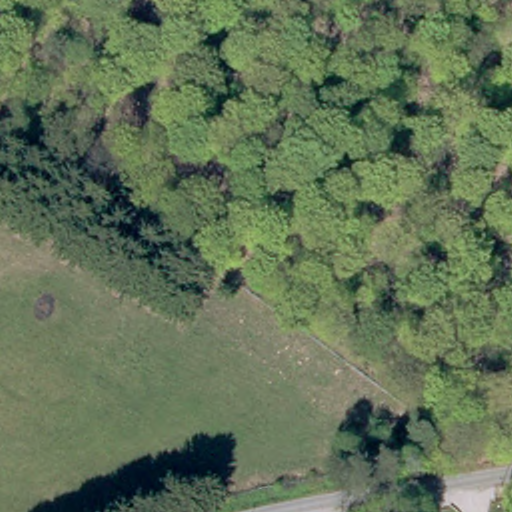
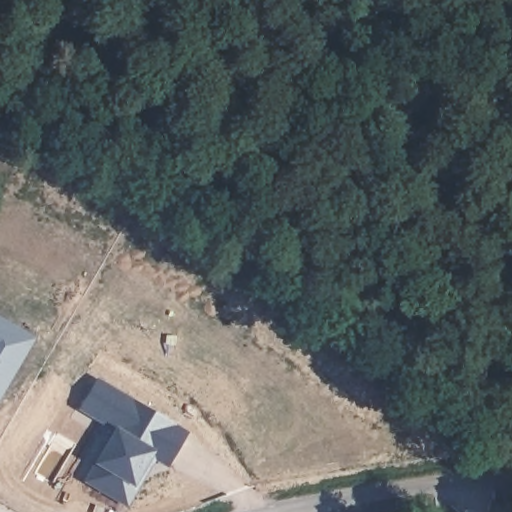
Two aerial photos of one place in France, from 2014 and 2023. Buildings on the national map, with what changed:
new [(0,398),(0,319),(34,339),(0,398)]
new [(92,477),(120,430),(84,409),(99,383),(186,434),(167,464),(155,457),(127,504),(90,482),(92,478),(92,477)]

